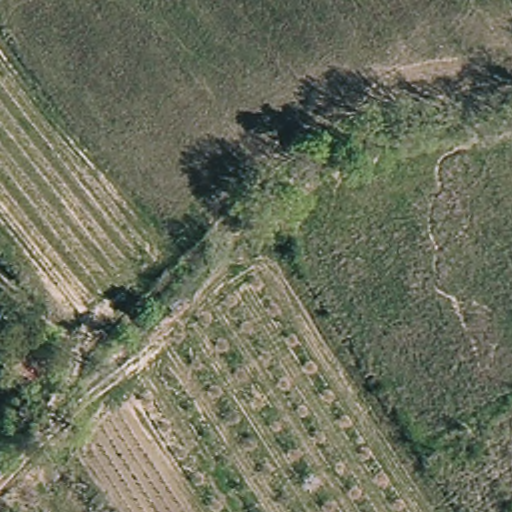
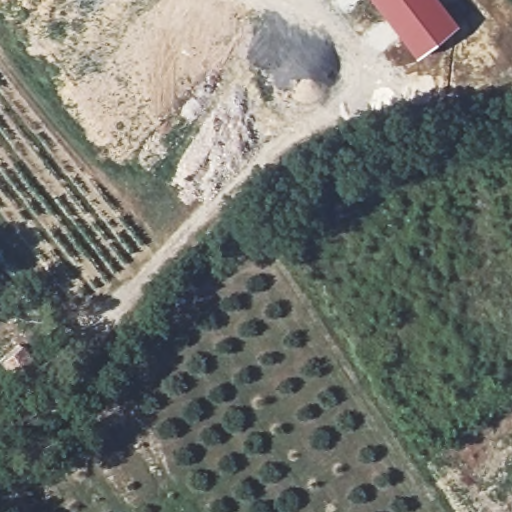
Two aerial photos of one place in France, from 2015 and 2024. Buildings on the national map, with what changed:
new [(416,57),(373,0),(441,0),(459,22),(416,57)]
unchanged [(25,348),(48,376),(32,389),(8,362),(25,348)]

